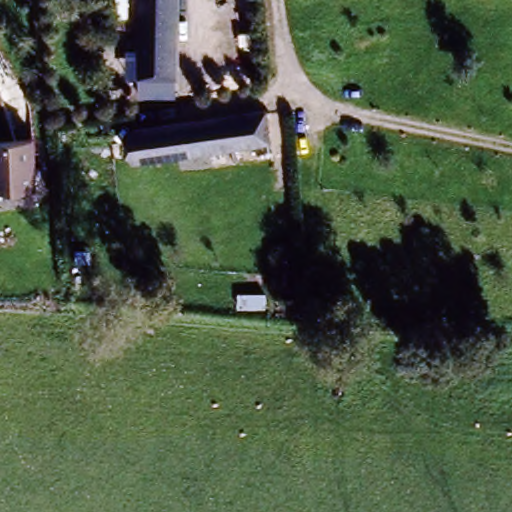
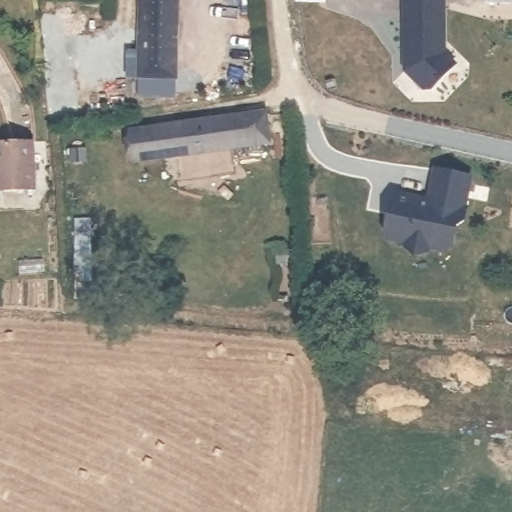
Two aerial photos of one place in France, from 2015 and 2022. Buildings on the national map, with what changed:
unchanged [(183,0),(182,64),(181,79),(136,77),(135,60),(137,0),(183,0)]
new [(433,89),(423,90),(405,71),(402,1),(446,0),(447,54),(457,64),(433,89)]
new [(512,0),(512,1),(485,2),(484,0),(512,0)]
unchanged [(132,113),(262,115),(263,152),(261,153),(261,167),(177,164),(177,150),(132,150),(132,113)]
unchanged [(0,144),(29,143),(32,190),(0,192),(0,144)]
new [(466,207),(469,207),(465,223),(456,228),(453,249),(445,254),(389,244),(384,234),(393,192),(427,198),(433,167),(475,176),(466,207)]

